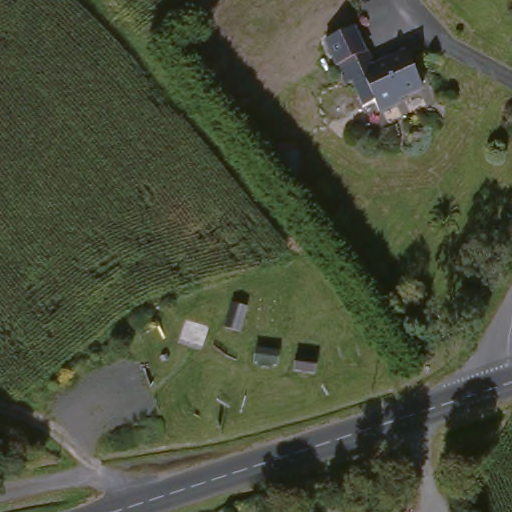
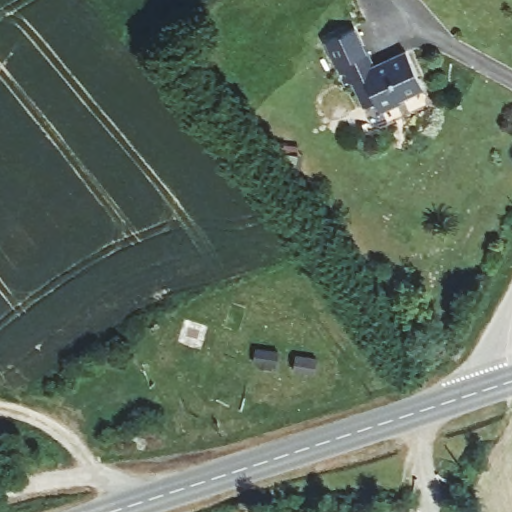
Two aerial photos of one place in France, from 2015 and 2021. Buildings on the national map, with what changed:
unchanged [(356,87),(346,91),(338,70),(339,70),(329,44),(359,31),(369,58),(371,57),(376,72),(414,58),(426,91),(404,100),(406,105),(384,114),(381,104),(366,111),(356,87)]

